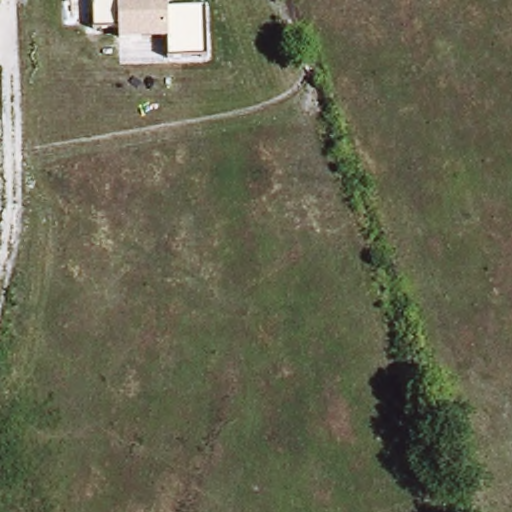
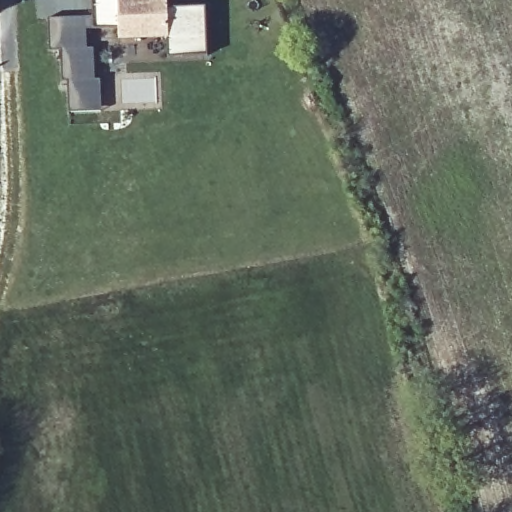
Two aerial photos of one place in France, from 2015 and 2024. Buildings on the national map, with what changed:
unchanged [(168,8),(204,5),(206,54),(169,56),(168,35),(118,37),(117,29),(92,29),(91,0),(167,0),(168,8)]
new [(92,17),(92,29),(84,31),(86,50),(92,49),(94,81),(99,81),(101,111),(66,112),(65,82),(60,82),(58,51),(48,51),(47,20),(92,17)]

